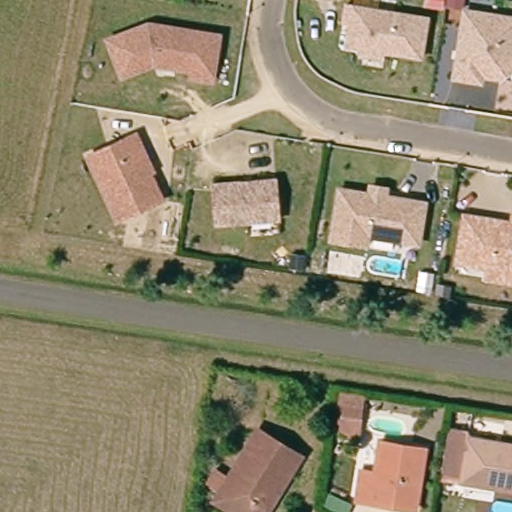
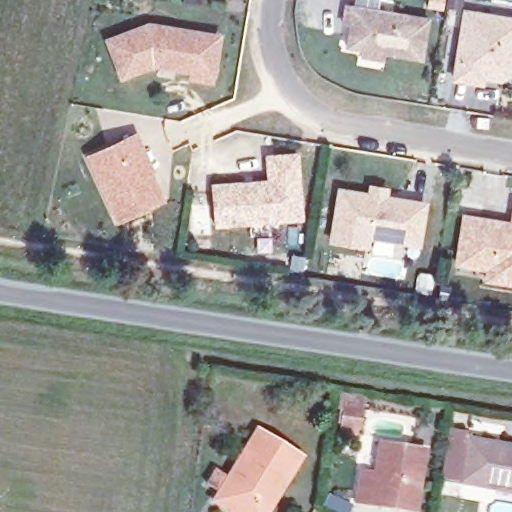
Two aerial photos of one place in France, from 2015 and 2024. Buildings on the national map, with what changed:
unchanged [(365,58),(365,52),(349,49),(350,37),(356,33),(356,27),(345,25),(347,8),(430,20),(424,61),(386,55),(385,61),(365,58)]
unchanged [(469,82),(452,79),(462,13),(512,21),(512,70),(509,70),(508,72),(497,80),(480,77),(478,83),(469,82)]
unchanged [(193,76),(194,69),(163,65),(161,61),(124,76),(110,40),(150,24),(205,32),(220,34),(218,49),(214,79),(193,76)]
unchanged [(165,200),(121,220),(91,156),(135,136),(165,200)]
new [(279,223),(275,183),(267,183),(265,156),(298,153),(304,221),(279,223)]
unchanged [(279,223),(215,229),(211,188),(275,183),(279,223)]
unchanged [(399,244),(364,239),(362,249),(327,243),(335,193),(365,198),(366,190),(381,192),(380,200),(420,206),(416,233),(415,247),(399,244)]
unchanged [(508,283),(456,275),(458,265),(465,218),(499,223),(512,224),(512,284),(508,283)]
unchanged [(309,269),(295,267),(297,253),(311,255),(309,269)]
unchanged [(436,292),(422,290),(425,271),(440,273),(436,292)]
unchanged [(350,410),(365,413),(361,441),(345,438),(350,410)]
unchanged [(442,476),(449,425),(473,429),(472,438),(512,444),(512,486),(442,476)]
unchanged [(303,460),(270,512),(249,512),(222,495),(261,432),(303,460)]
unchanged [(366,474),(380,476),(383,445),(427,451),(420,510),(362,501),(366,474)]

